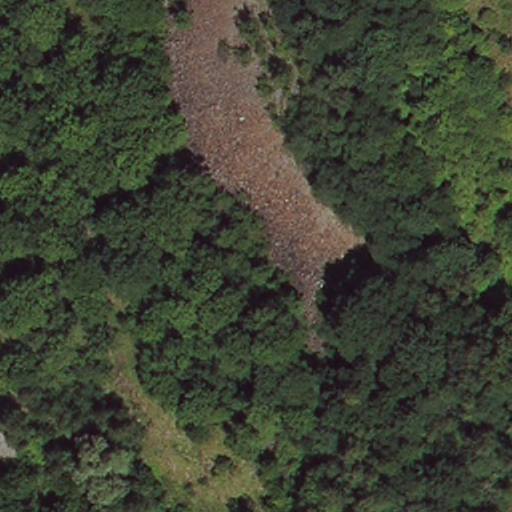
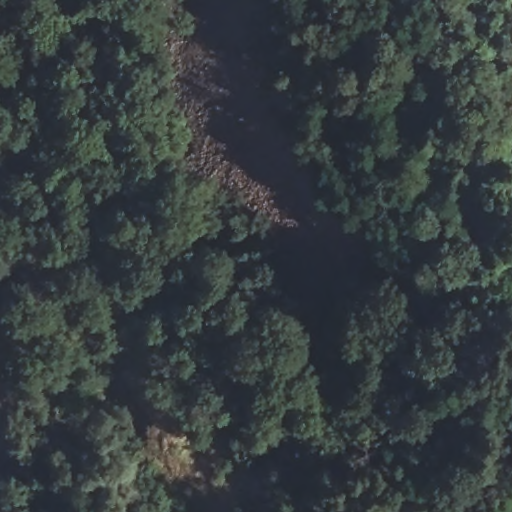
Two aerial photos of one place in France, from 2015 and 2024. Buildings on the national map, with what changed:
[]

